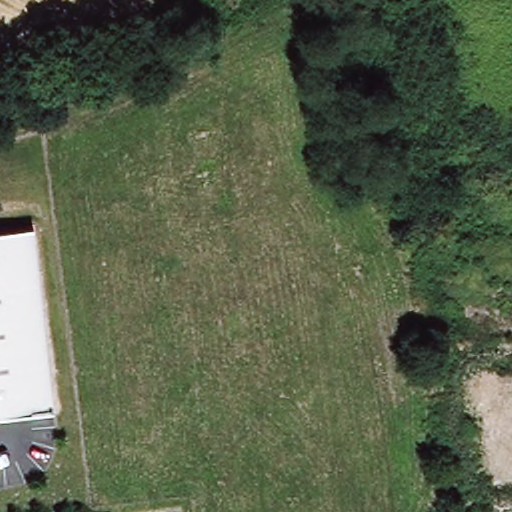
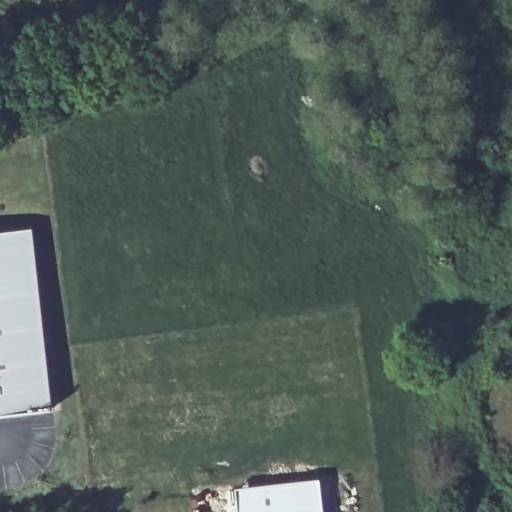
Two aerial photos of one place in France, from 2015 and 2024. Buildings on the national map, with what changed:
unchanged [(49,354),(1,359),(0,359),(0,232),(34,228),(49,354)]
unchanged [(49,354),(56,409),(0,415),(0,359),(1,359),(49,354)]
new [(321,477),(325,512),(240,512),(237,486),(321,477)]

